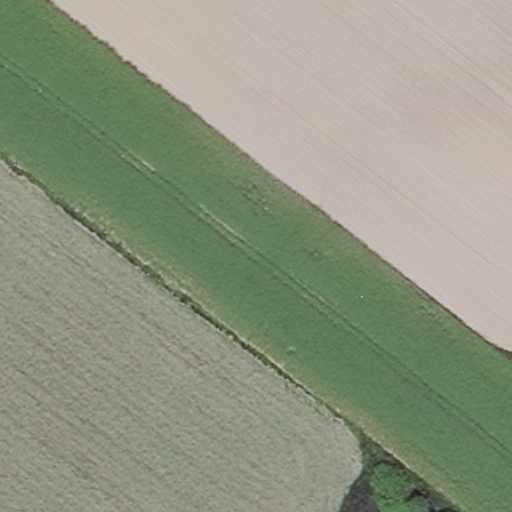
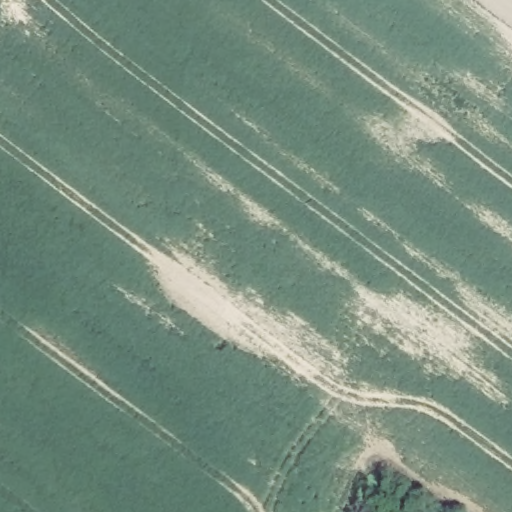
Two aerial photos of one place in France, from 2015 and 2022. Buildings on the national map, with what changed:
[]

